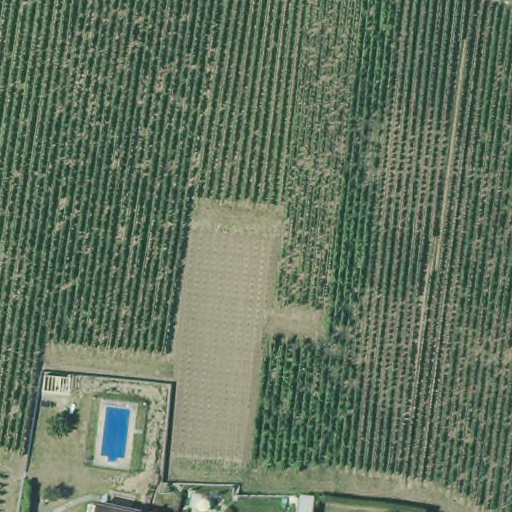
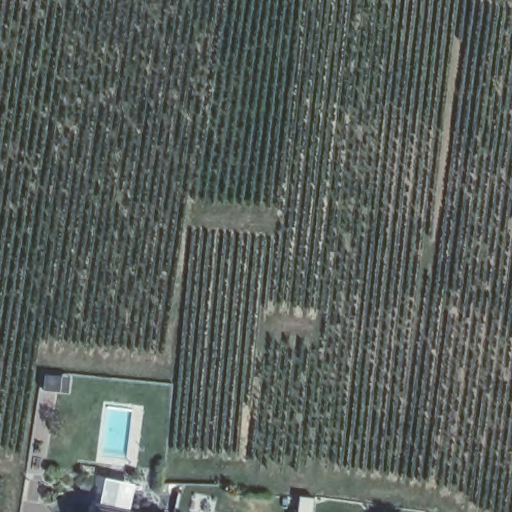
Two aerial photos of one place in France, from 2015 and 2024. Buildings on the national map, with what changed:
unchanged [(99,501),(100,497),(161,512),(91,512),(95,500),(99,501)]

